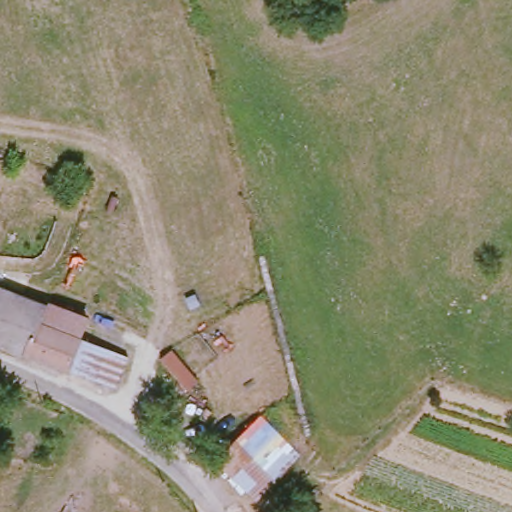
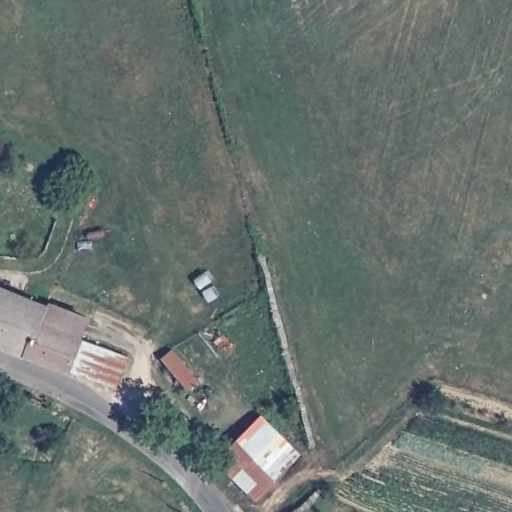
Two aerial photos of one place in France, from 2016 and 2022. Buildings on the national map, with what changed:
unchanged [(73,369),(72,371),(41,357),(32,353),(0,342),(0,286),(50,305),(51,303),(93,319),(86,336),(111,346),(111,347),(133,356),(119,388),(98,379),(73,369)]
unchanged [(224,456),(269,416),(306,458),(261,499),(224,456)]

